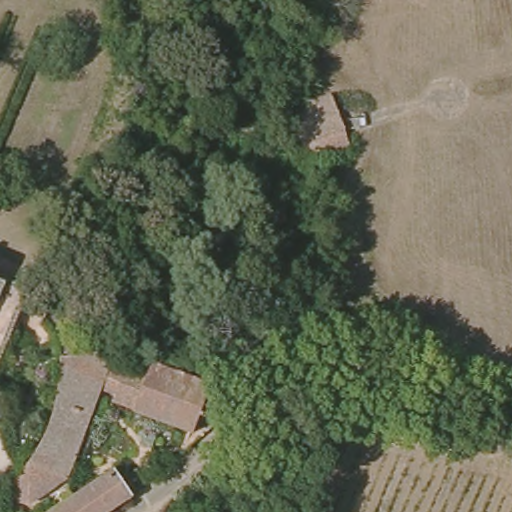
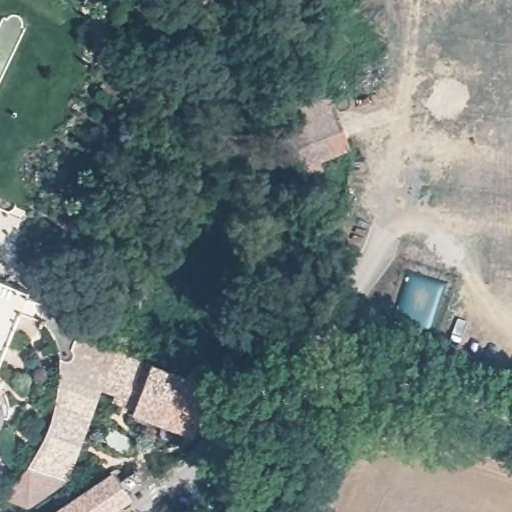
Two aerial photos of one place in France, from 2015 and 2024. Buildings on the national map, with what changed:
unchanged [(275,113),(289,110),(331,99),(339,131),(303,140),(306,155),(294,158),(286,161),(275,113)]
unchanged [(34,286),(25,306),(3,365),(0,371),(0,268),(32,281),(34,286)]
unchanged [(56,295),(95,330),(92,337),(210,380),(211,386),(237,395),(232,403),(206,433),(101,393),(71,475),(33,460),(46,442),(56,419),(65,390),(68,358),(66,344),(51,313),(25,306),(34,286),(56,295)]
unchanged [(7,401),(6,410),(6,415),(0,422),(0,391),(7,401)]
unchanged [(25,468),(5,492),(0,478),(0,422),(6,415),(25,468)]
unchanged [(33,460),(71,475),(35,506),(5,492),(25,468),(33,460)]
unchanged [(126,484),(136,478),(141,484),(110,509),(106,512),(52,512),(114,469),(126,484)]

